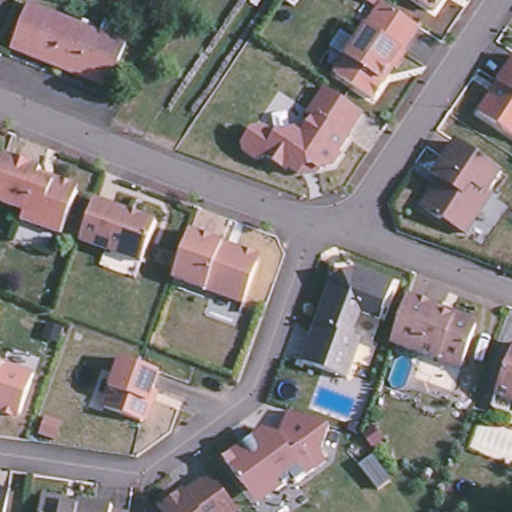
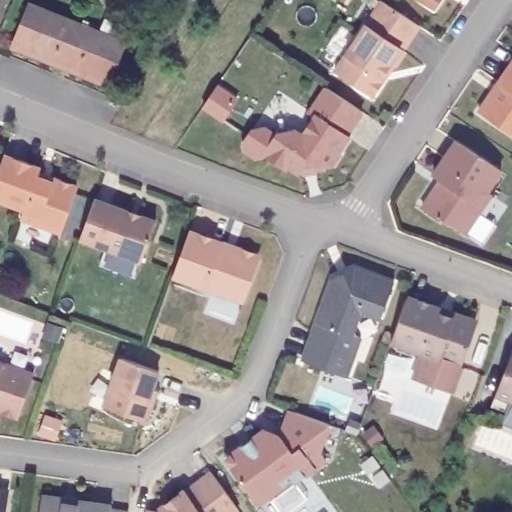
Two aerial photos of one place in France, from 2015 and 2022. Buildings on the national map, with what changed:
unchanged [(371,91),(334,64),(376,0),(395,0),(400,4),(419,17),(402,42),(405,43),(395,59),(392,58),(384,72),(371,91)]
unchanged [(432,1),(430,0),(433,0),(432,1)]
unchanged [(130,47),(113,87),(19,48),(35,9),(130,47)]
unchanged [(477,109),(487,94),(497,80),(512,59),(512,132),(477,109)]
unchanged [(362,102),(345,128),(347,129),(336,145),(339,147),(332,157),(324,158),(322,157),(319,161),(312,157),(302,158),(297,166),(287,158),(285,161),(263,146),(262,149),(254,150),(243,143),(242,136),(250,123),(263,120),(275,128),(276,126),(294,123),(302,128),(314,109),(308,105),(326,78),(362,102)]
unchanged [(455,133),(500,164),(485,185),(490,188),(465,225),(440,209),(439,211),(420,200),(430,185),(440,171),(432,167),(455,133)]
unchanged [(67,174),(75,177),(80,182),(64,226),(24,211),(27,202),(0,192),(0,168),(7,148),(7,147),(44,160),(42,165),(67,174)]
unchanged [(159,214),(145,254),(110,241),(84,232),(99,192),(159,214)]
unchanged [(243,246),(254,250),(257,257),(242,298),(210,287),(172,273),(189,226),(222,238),(243,246)]
unchanged [(380,317),(360,310),(352,328),(355,334),(360,335),(345,375),(300,358),(330,275),(354,265),(393,280),(380,317)]
unchanged [(465,313),(476,317),(480,323),(464,365),(427,351),(395,339),(412,293),(444,305),(465,313)]
unchanged [(154,405),(150,415),(145,418),(107,404),(125,355),(162,368),(155,386),(160,388),(154,405)]
unchanged [(495,399),(500,387),(512,355),(512,403),(511,405),(495,399)]
unchanged [(36,372),(23,411),(16,414),(5,410),(0,408),(0,359),(5,361),(36,372)]
unchanged [(240,486),(222,462),(241,448),(250,441),(262,433),(279,439),(289,412),(329,426),(318,454),(325,463),(294,486),(290,482),(274,493),(257,507),(240,486)]
unchanged [(162,507),(159,501),(167,494),(182,483),(184,484),(210,464),(238,502),(224,512),(145,512),(146,505),(162,507)]
unchanged [(2,512),(0,512),(0,482),(7,483),(2,512)]
unchanged [(45,489),(57,491),(77,493),(110,497),(110,502),(128,504),(127,512),(37,512),(40,494),(45,489)]

